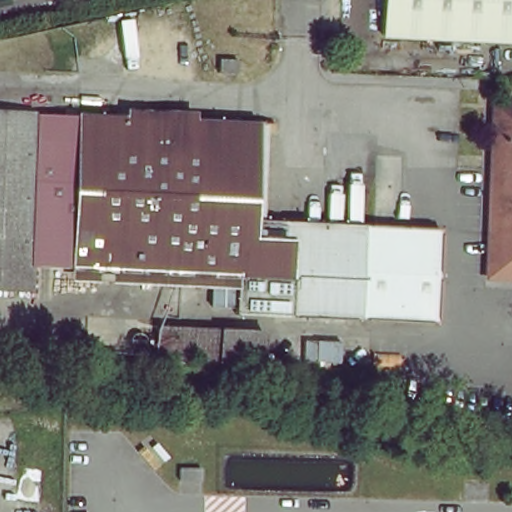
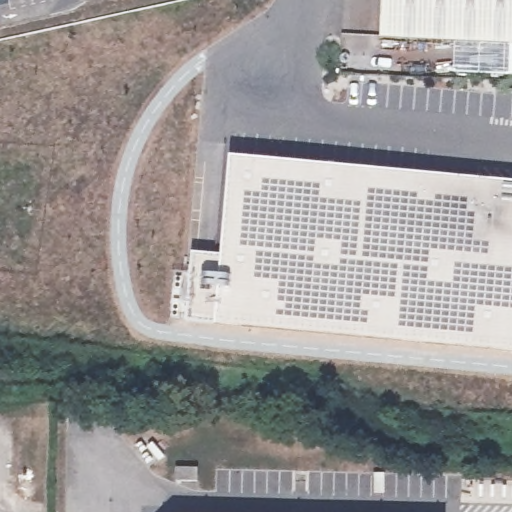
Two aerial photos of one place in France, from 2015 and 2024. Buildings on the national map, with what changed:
unchanged [(9,0),(0,2),(0,0),(9,0)]
unchanged [(382,0),(512,0),(512,50),(381,43),(382,0)]
demolished [(499,148),(487,147),(489,109),(512,110),(512,281),(493,280),(499,148)]
demolished [(266,129),(260,229),(371,235),(365,329),(239,323),(241,280),(16,269),(16,292),(0,292),(0,115),(30,116),(28,140),(86,144),(87,120),(266,129)]
new [(192,254),(222,255),(231,158),(512,184),(512,353),(216,325),(186,322),(192,254)]
demolished [(448,240),(442,334),(366,329),(365,329),(371,235),(448,240)]
demolished [(153,359),(155,332),(257,337),(257,364),(153,359)]

